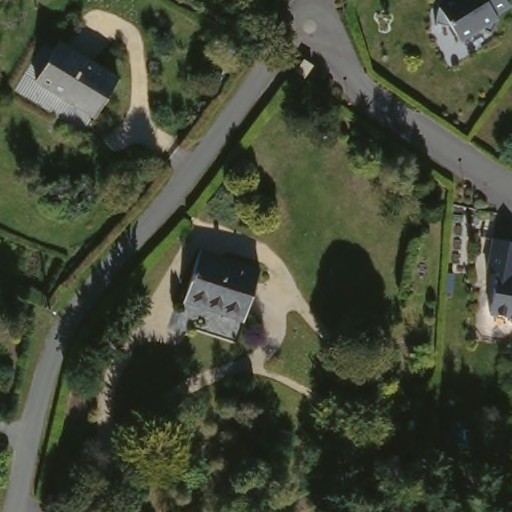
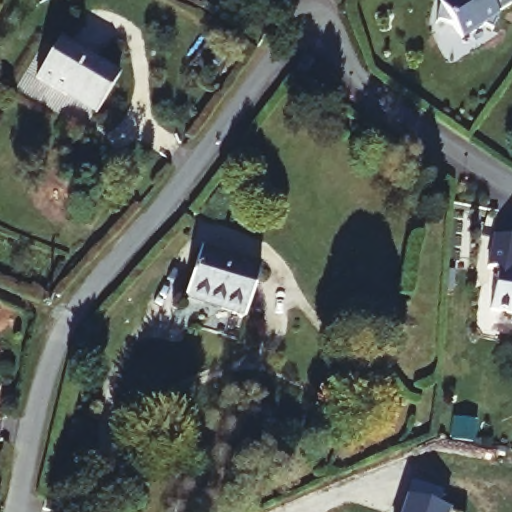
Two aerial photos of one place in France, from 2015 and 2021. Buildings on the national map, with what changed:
unchanged [(495,11),(497,14),(488,28),(481,24),(459,37),(450,22),(434,19),(435,10),(437,3),(438,0),(508,0),(508,1),(495,11)]
unchanged [(120,79),(97,116),(36,80),(59,42),(120,79)]
unchanged [(312,66),(305,75),(298,70),(305,61),(312,66)]
unchanged [(510,321),(511,316),(487,312),(495,271),(485,269),(491,238),(512,242),(512,321),(510,321)]
unchanged [(258,270),(242,319),(218,311),(220,307),(184,296),(199,251),(258,270)]
unchanged [(454,423),(475,426),(472,444),(452,442),(454,423)]
new [(407,499),(413,481),(443,491),(438,509),(448,512),(403,512),(407,499)]

